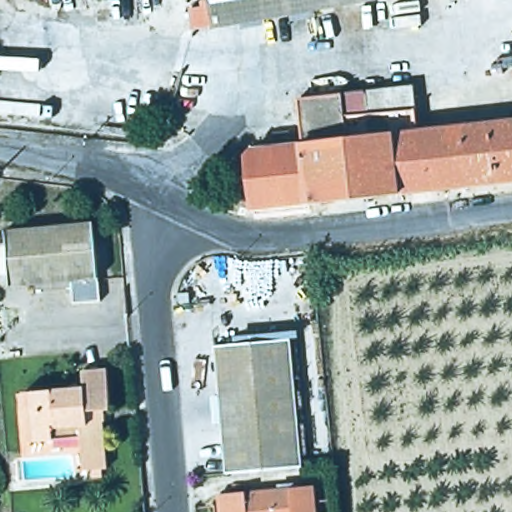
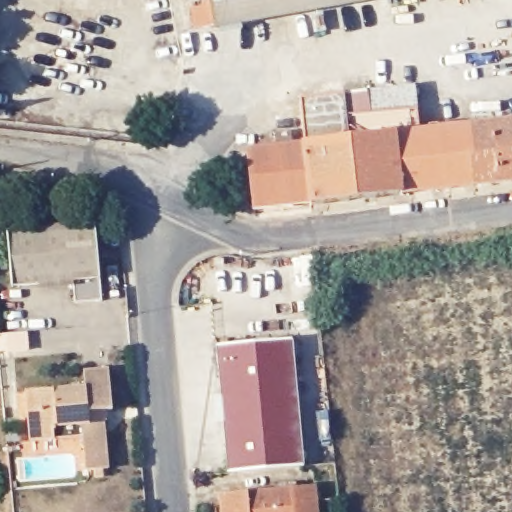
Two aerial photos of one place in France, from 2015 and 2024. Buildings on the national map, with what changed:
unchanged [(208,28),(207,26),(187,29),(183,8),(195,6),(194,0),(366,0),(208,28)]
unchanged [(402,188),(402,189),(306,200),(306,198),(252,204),(245,149),(250,143),(302,138),(298,94),(367,85),(370,108),(408,104),(410,125),(512,114),(512,177),(402,188)]
unchanged [(100,296),(74,299),(72,276),(7,282),(2,224),(93,216),(100,296)]
unchanged [(303,462),(226,470),(215,340),(291,333),(303,462)]
unchanged [(111,404),(102,405),(107,462),(84,465),(80,420),(50,422),(52,433),(27,436),(22,387),(82,382),(81,366),(107,363),(111,404)]
unchanged [(247,488),(290,485),(290,482),(314,480),(317,512),(221,512),(218,489),(247,486),(247,488)]

